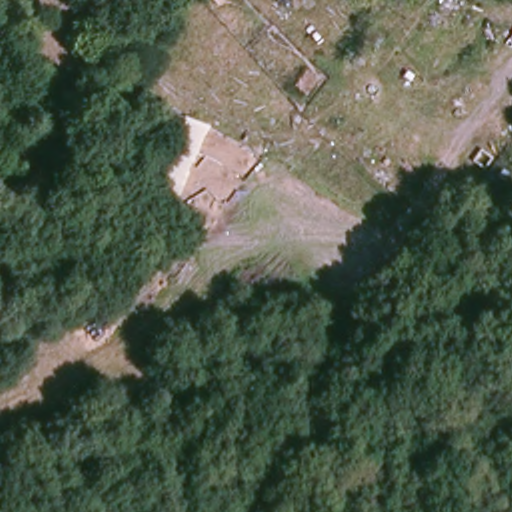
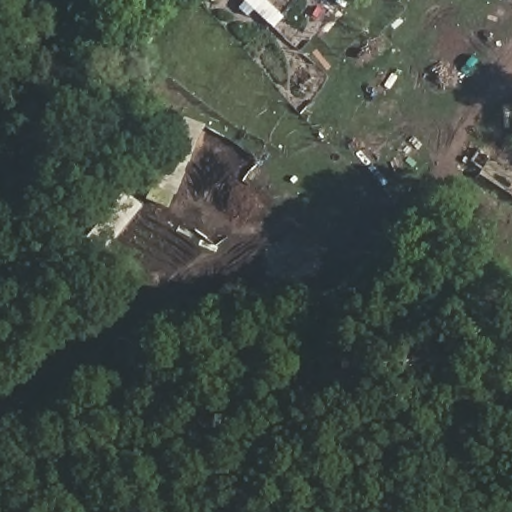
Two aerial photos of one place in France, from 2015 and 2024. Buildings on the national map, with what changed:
unchanged [(294,86),(305,71),(316,80),(304,95),(294,86)]

